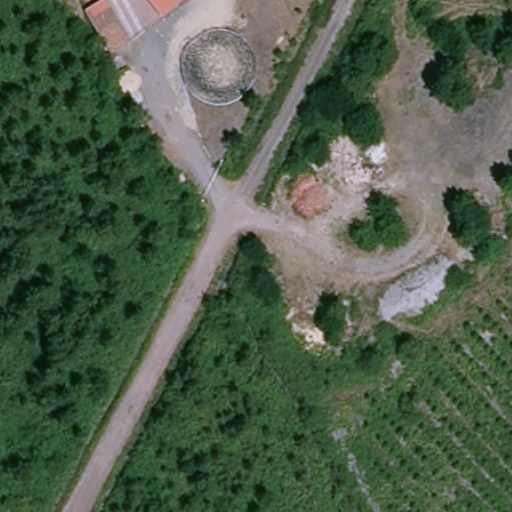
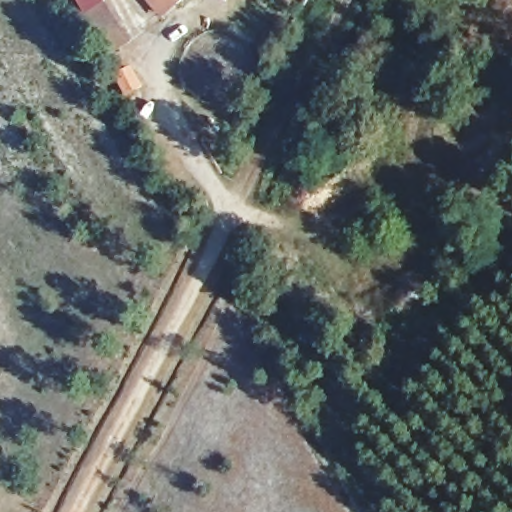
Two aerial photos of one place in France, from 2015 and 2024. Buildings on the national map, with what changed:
unchanged [(163,17),(149,0),(184,0),(163,17)]
unchanged [(102,1),(127,45),(106,57),(80,13),(102,1)]

